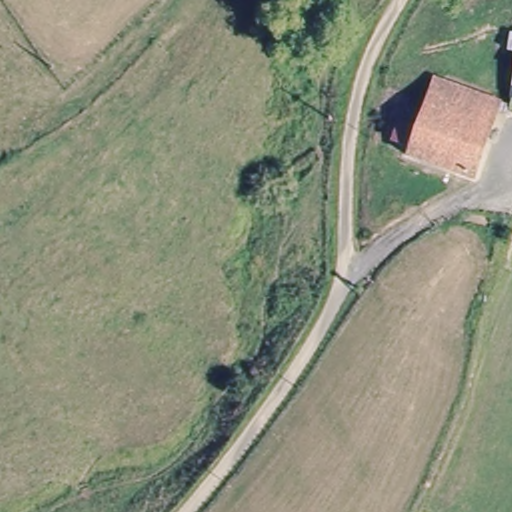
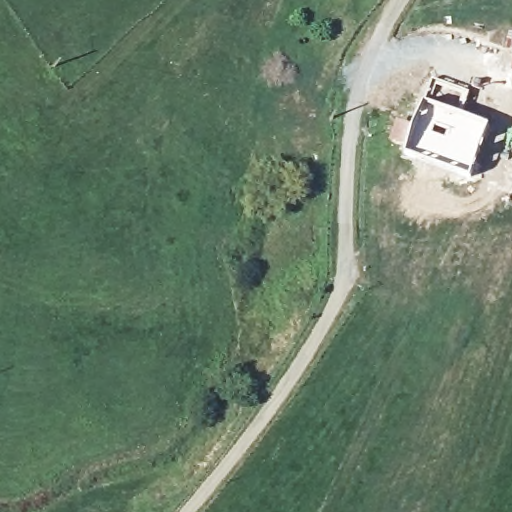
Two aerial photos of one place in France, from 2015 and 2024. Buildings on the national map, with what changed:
unchanged [(509,30),(512,30),(512,54),(508,53),(509,30)]
unchanged [(499,99),(505,99),(512,66),(512,119),(495,116),(499,99)]
unchanged [(495,116),(489,134),(487,140),(475,161),(459,181),(402,149),(442,67),(499,99),(495,116)]

